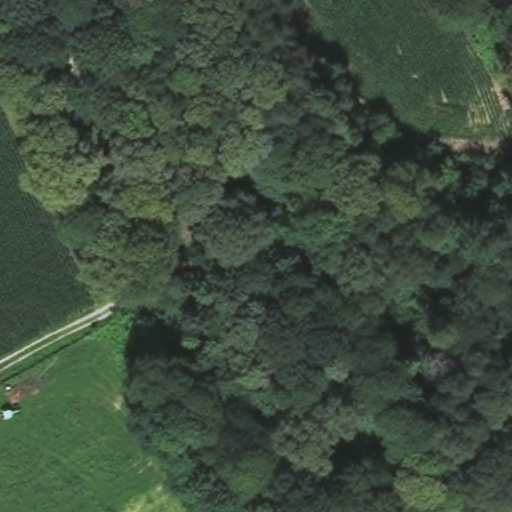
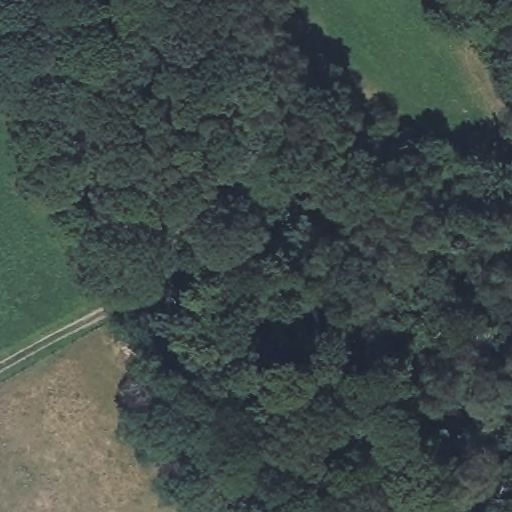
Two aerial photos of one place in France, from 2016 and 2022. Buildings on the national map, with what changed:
unchanged [(111,151),(117,168),(86,182),(78,164),(111,151)]

